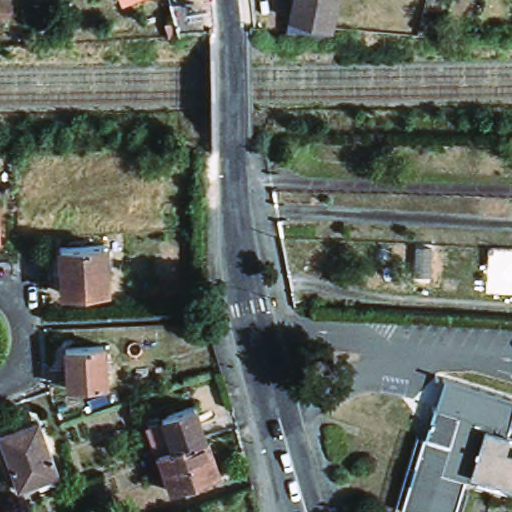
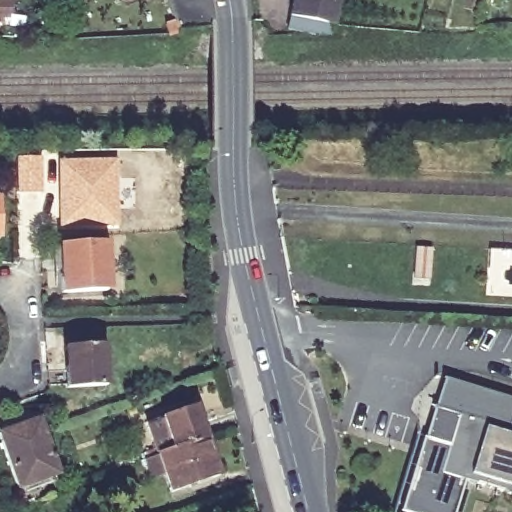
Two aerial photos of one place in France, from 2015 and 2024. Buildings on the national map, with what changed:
unchanged [(119,0),(122,0),(120,1),(119,0)]
unchanged [(287,31),(294,0),(337,0),(329,38),(325,38),(287,31)]
new [(42,157),(44,193),(16,194),(14,158),(42,157)]
new [(57,159),(115,158),(119,225),(57,229),(57,159)]
unchanged [(106,292),(60,295),(57,249),(104,246),(106,292)]
unchanged [(104,388),(66,390),(63,352),(101,349),(104,388)]
unchanged [(512,396),(512,417),(505,439),(492,435),(493,429),(457,418),(447,450),(422,443),(442,375),(512,396)]
unchanged [(173,452),(163,420),(192,411),(203,442),(173,452)]
unchanged [(457,418),(493,429),(492,435),(512,441),(512,497),(464,483),(455,512),(401,512),(422,443),(447,450),(457,418)]
unchanged [(35,419),(37,419),(55,473),(12,488),(0,453),(0,440),(14,435),(11,427),(35,419)]
unchanged [(173,452),(203,442),(215,479),(170,493),(157,457),(173,452)]

